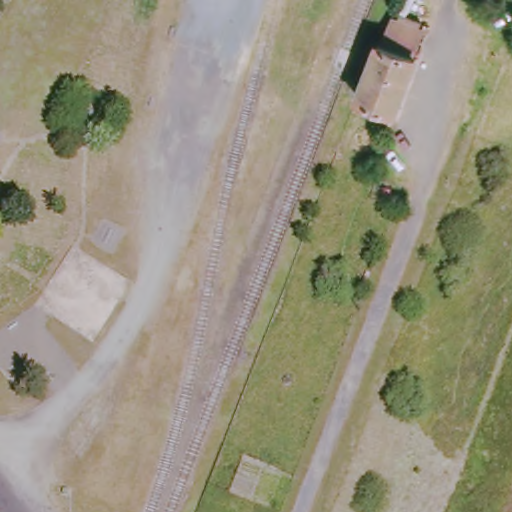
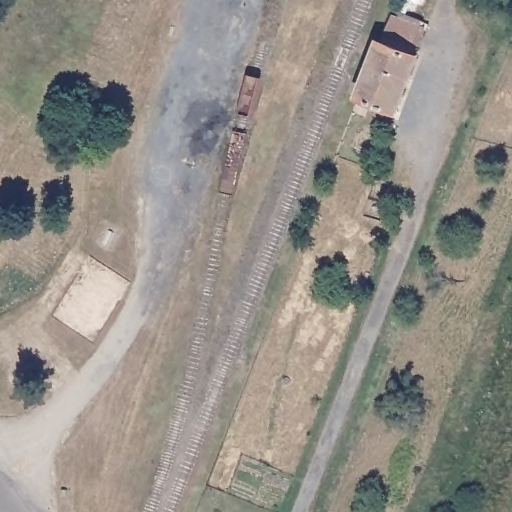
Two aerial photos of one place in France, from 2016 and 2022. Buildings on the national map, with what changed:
unchanged [(377,42),(386,20),(417,30),(407,55),(409,57),(388,110),(351,96),(371,41),(377,42)]

